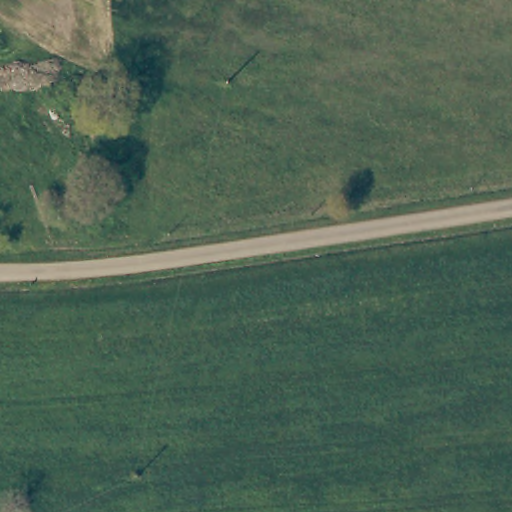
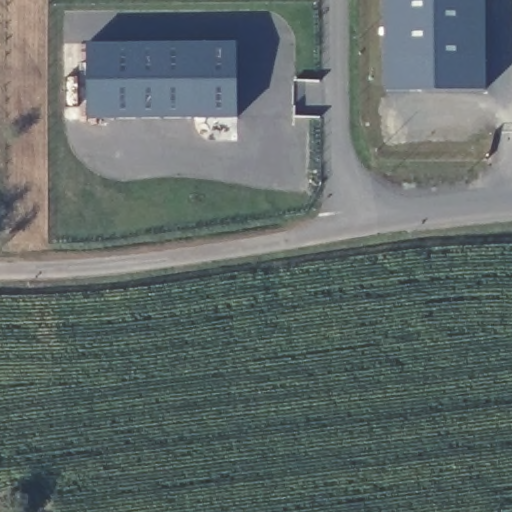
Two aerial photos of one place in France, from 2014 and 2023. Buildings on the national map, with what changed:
new [(384,91),(383,0),(485,0),(485,91),(384,91)]
new [(238,120),(88,121),(86,44),(238,43),(238,120)]

